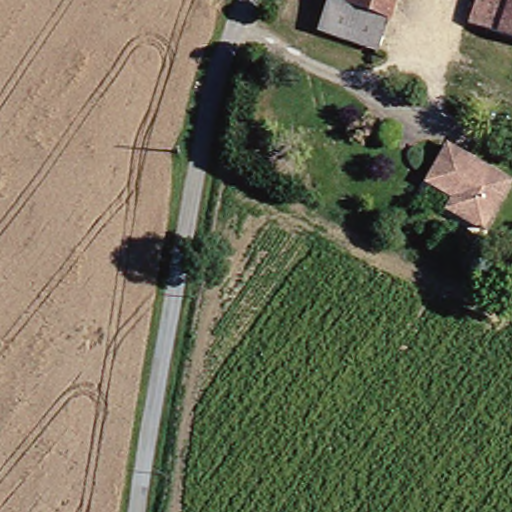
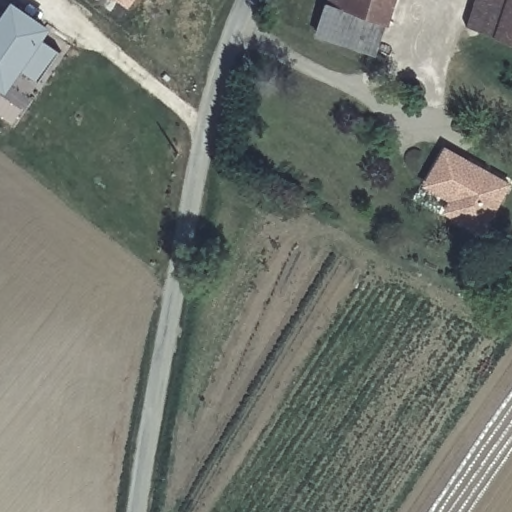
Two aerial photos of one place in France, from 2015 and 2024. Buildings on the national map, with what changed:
new [(119,0),(133,0),(128,6),(119,0)]
unchanged [(389,0),(379,28),(322,9),(326,0),(389,0)]
unchanged [(478,0),(512,0),(512,46),(467,31),(478,0)]
unchanged [(369,59),(312,40),(322,9),(379,28),(369,59)]
new [(55,50),(34,80),(12,64),(0,81),(0,10),(55,50)]
unchanged [(434,175),(453,144),(512,181),(512,194),(489,232),(460,216),(452,211),(457,200),(430,183),(434,175)]

